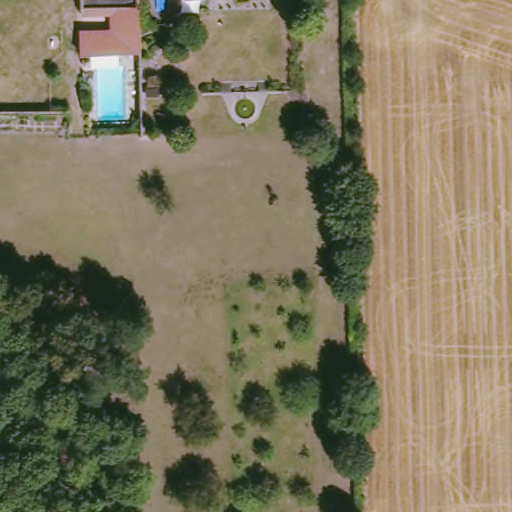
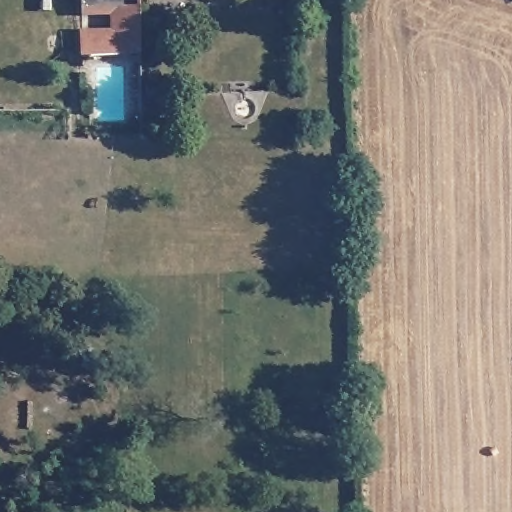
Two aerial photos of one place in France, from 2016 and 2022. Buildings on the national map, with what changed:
unchanged [(149,51),(85,54),(84,29),(108,28),(108,11),(80,12),(79,0),(147,0),(149,51)]

